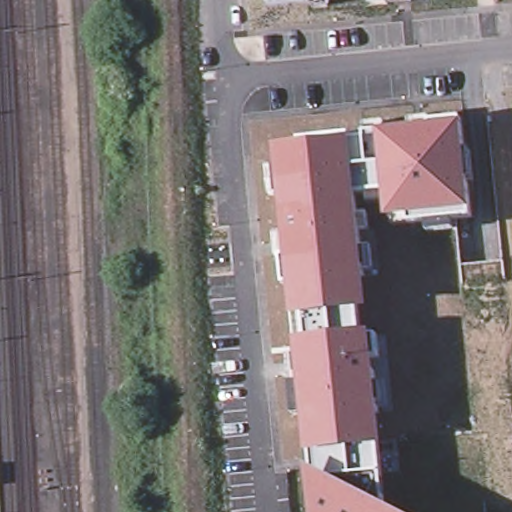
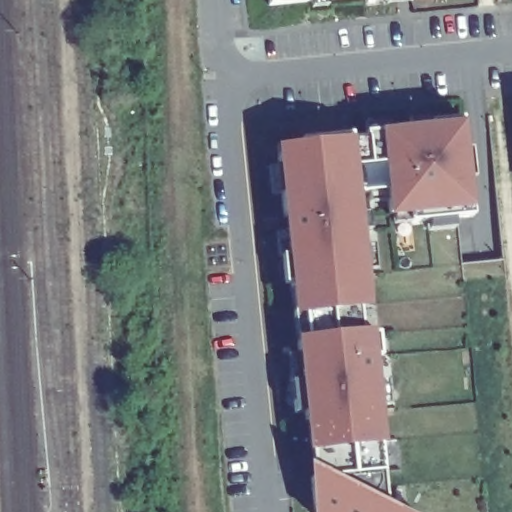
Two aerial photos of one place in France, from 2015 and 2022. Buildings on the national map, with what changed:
unchanged [(259,1),(258,0),(274,0),(259,1)]
unchanged [(453,220),(454,230),(425,234),(424,222),(409,224),(408,216),(387,217),(384,194),(359,197),(361,215),(367,214),(369,231),(361,232),(363,247),(370,246),(374,273),(366,276),(369,311),(361,312),(363,332),(375,332),(378,358),(374,358),(388,506),(399,512),(310,512),(308,466),(312,467),(311,452),(305,452),(302,414),(293,415),(289,384),(299,382),(299,373),(294,374),(292,357),(298,356),(294,317),(290,285),(285,286),(281,257),(288,257),(280,195),(276,196),(273,167),(278,167),(276,147),(299,144),(298,140),(353,134),(354,141),(364,139),(364,124),(386,121),(387,129),(410,126),(409,119),(431,116),(431,122),(462,119),(472,216),(453,220)]

